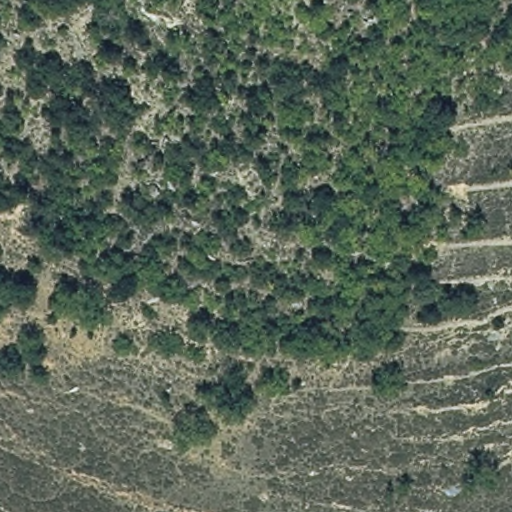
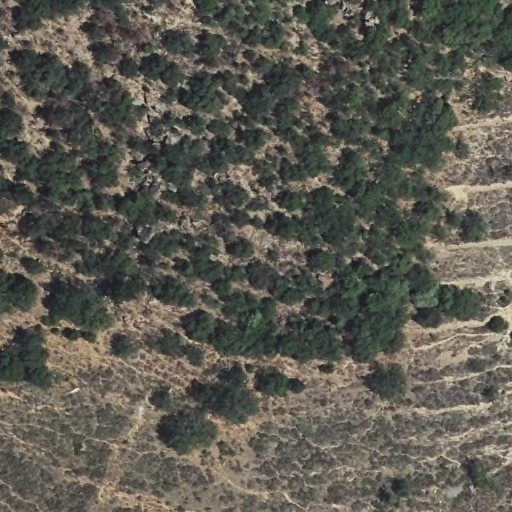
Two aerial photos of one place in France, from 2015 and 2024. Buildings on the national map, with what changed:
[]

